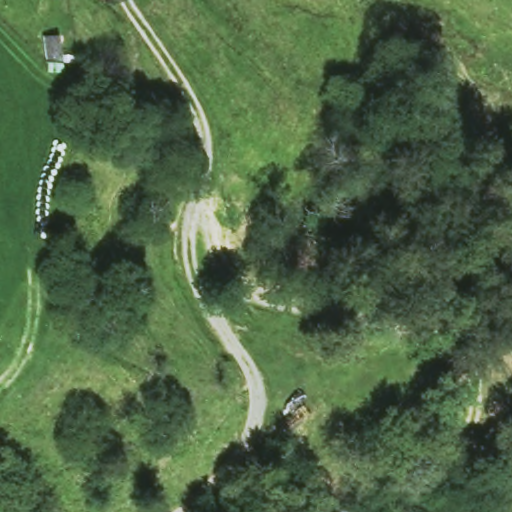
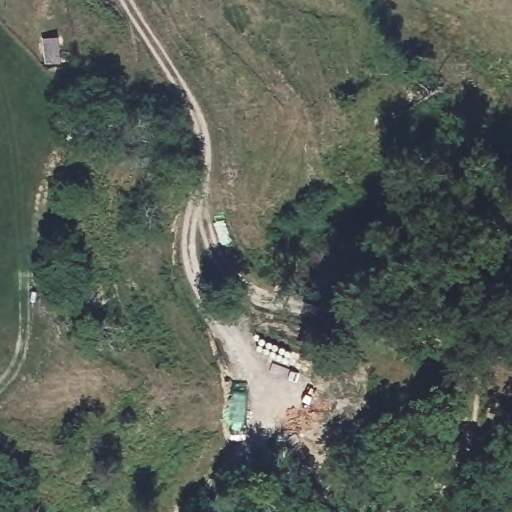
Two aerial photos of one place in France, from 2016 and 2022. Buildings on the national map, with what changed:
unchanged [(58,30),(62,55),(40,56),(38,30),(58,30)]

